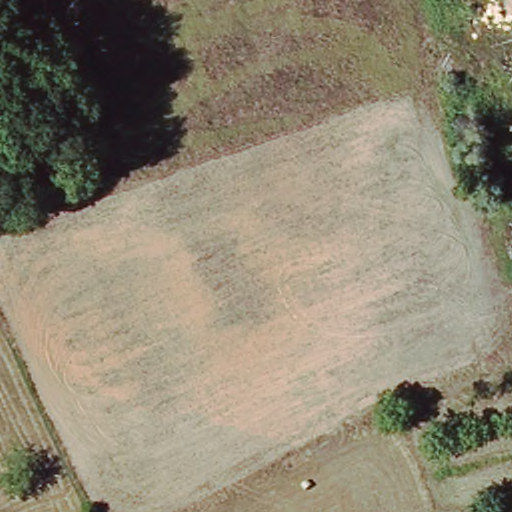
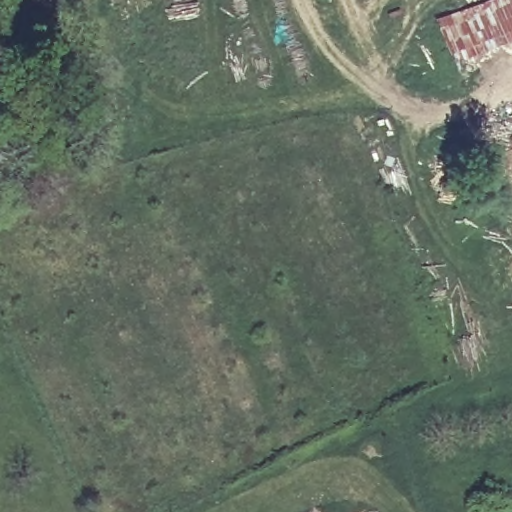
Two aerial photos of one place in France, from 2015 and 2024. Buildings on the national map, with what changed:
new [(512,0),(512,44),(452,68),(433,20),(486,0),(512,0)]

